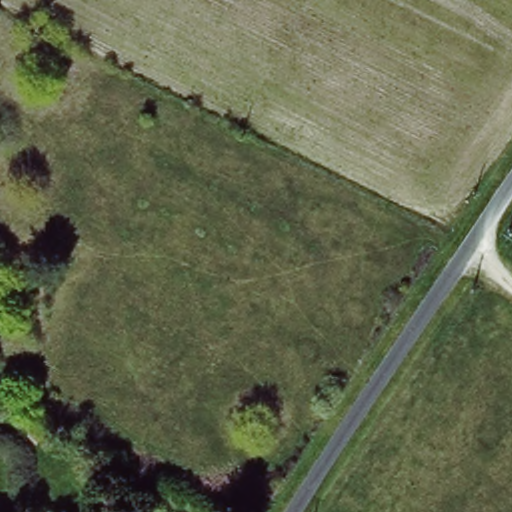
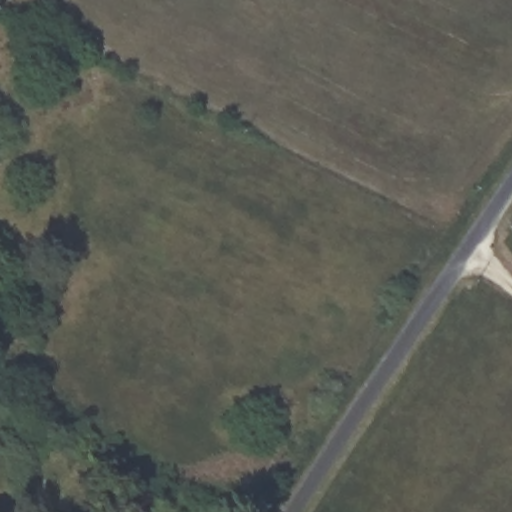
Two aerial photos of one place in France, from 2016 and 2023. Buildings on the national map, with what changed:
unchanged [(503,252),(509,243),(512,246),(512,255),(511,257),(503,252)]

